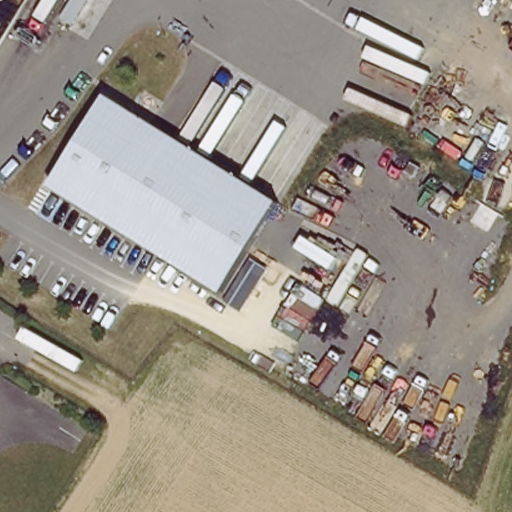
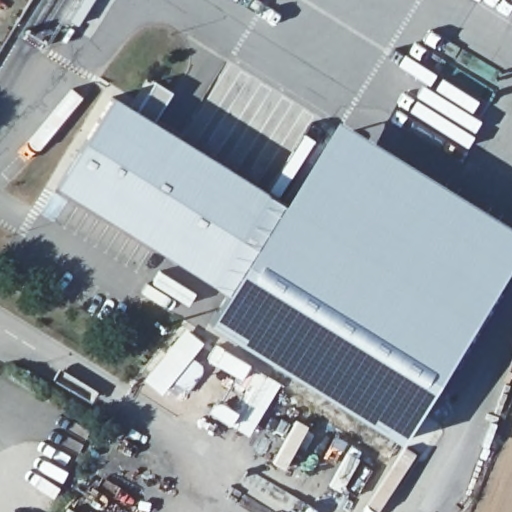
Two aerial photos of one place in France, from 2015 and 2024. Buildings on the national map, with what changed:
unchanged [(224,296),(52,187),(109,96),(281,203),(224,296)]
new [(224,296),(281,203),(334,117),(512,229),(512,263),(401,444),(208,323),(224,296)]

